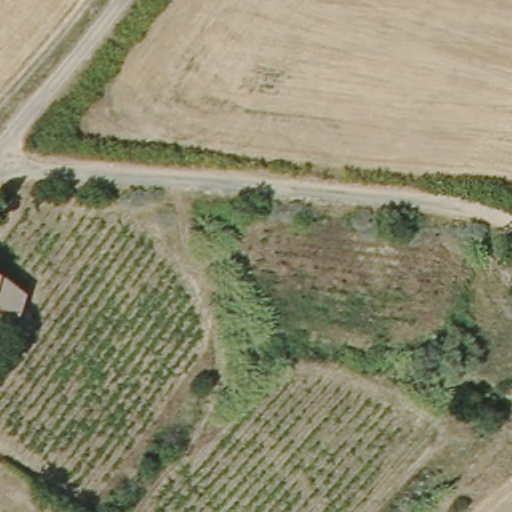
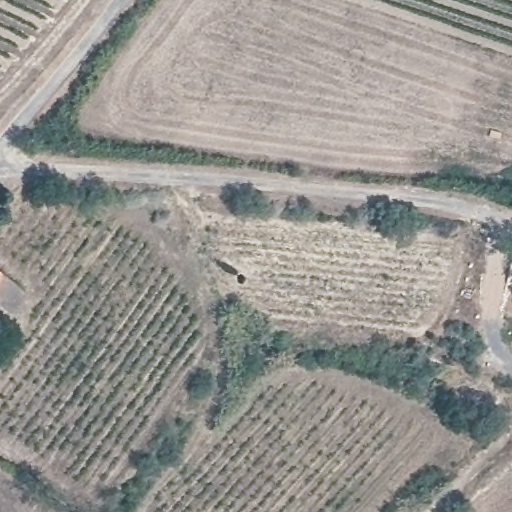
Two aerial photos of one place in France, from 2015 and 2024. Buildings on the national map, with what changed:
unchanged [(13,276),(8,298),(0,309),(0,265),(13,276)]

